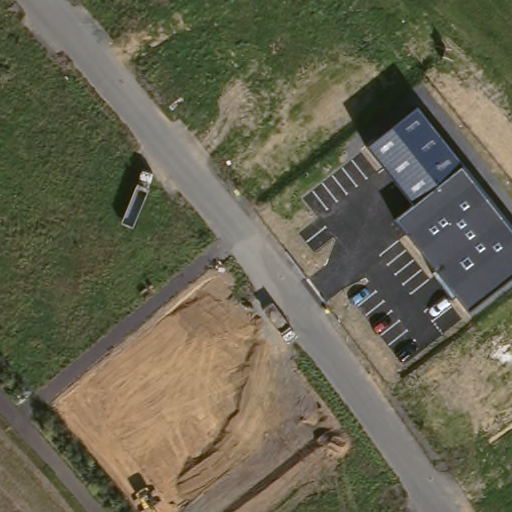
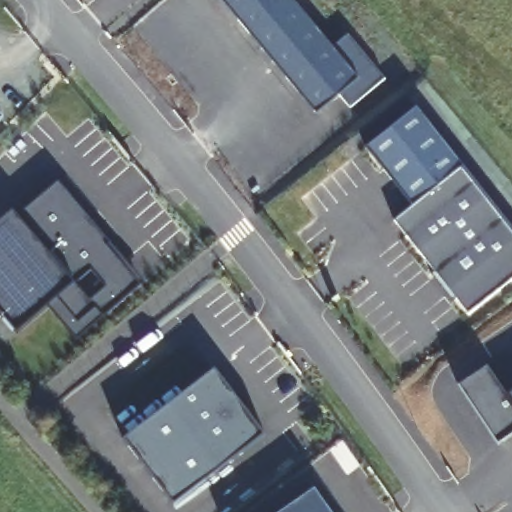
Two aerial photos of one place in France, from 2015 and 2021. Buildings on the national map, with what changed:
new [(313,0),(301,10),(331,47),(347,34),(384,79),(348,108),(337,95),(314,114),(232,14),(249,0),(313,0)]
new [(12,114),(0,127),(0,102),(12,114)]
unchanged [(512,279),(468,313),(395,220),(415,206),(368,147),(415,110),(512,230),(512,279)]
new [(50,297),(19,323),(0,300),(0,225),(22,206),(27,212),(67,179),(115,235),(111,237),(144,278),(105,309),(79,331),(50,297)]
new [(509,397),(512,396),(512,437),(500,445),(460,385),(488,367),(509,397)]
new [(216,371),(269,435),(180,508),(127,443),(216,371)]

